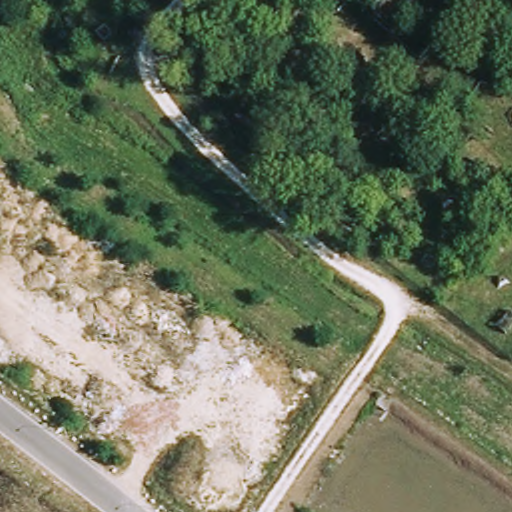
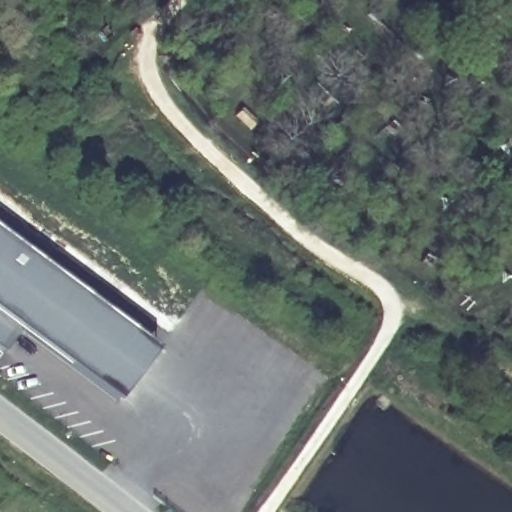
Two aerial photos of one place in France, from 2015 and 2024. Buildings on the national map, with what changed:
new [(22,328),(5,349),(0,346),(0,232),(156,349),(117,401),(22,328)]

